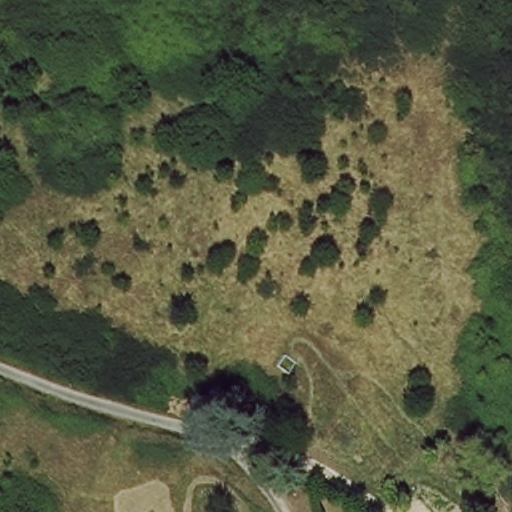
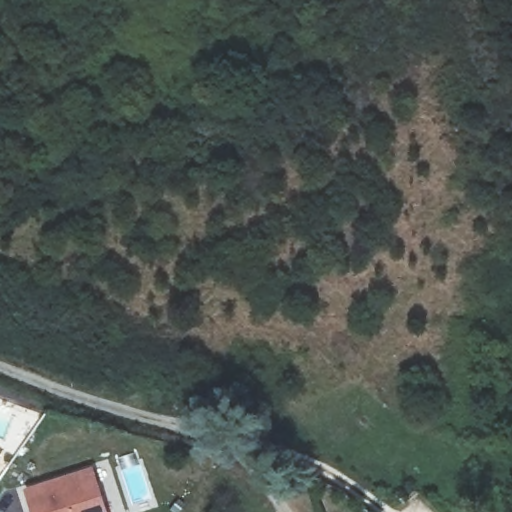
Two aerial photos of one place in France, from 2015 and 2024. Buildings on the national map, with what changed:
new [(94,467),(109,512),(32,512),(25,488),(94,467)]

